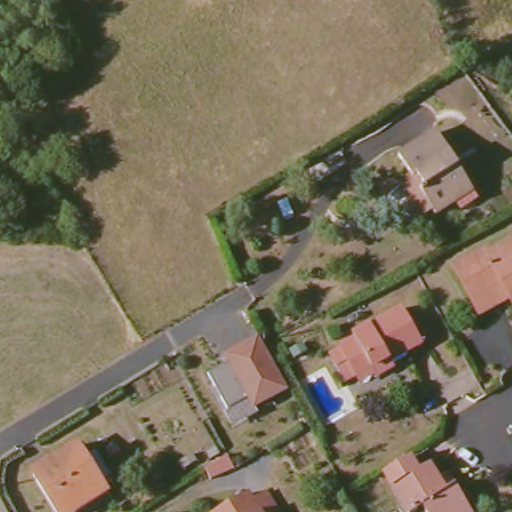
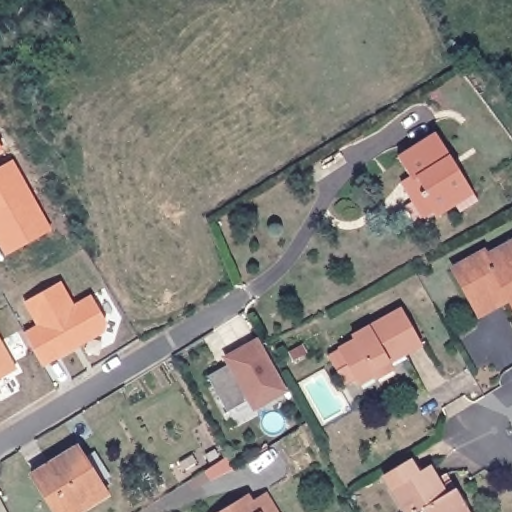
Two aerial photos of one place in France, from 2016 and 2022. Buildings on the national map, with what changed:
unchanged [(444,135),(476,189),(456,200),(461,210),(438,221),(425,197),(429,195),(422,182),(417,185),(402,158),(444,135)]
new [(0,155),(0,144),(5,152),(0,155)]
new [(52,231),(7,255),(0,241),(0,168),(13,161),(52,231)]
unchanged [(477,303),(458,269),(491,252),(494,256),(512,246),(512,285),(477,303)]
new [(40,327),(27,302),(62,283),(75,307),(94,297),(107,321),(104,333),(84,344),(78,342),(71,346),(73,350),(44,367),(26,335),(40,327)]
unchanged [(348,333),(350,337),(360,331),(358,328),(405,302),(427,340),(405,351),(391,360),(394,366),(373,377),(370,372),(360,377),(349,383),(327,345),(339,338),(348,333)]
unchanged [(207,372),(227,362),(222,353),(257,335),(287,387),(252,408),(246,398),(226,408),(207,372)]
new [(0,382),(0,339),(19,372),(0,382)]
unchanged [(67,512),(57,512),(34,476),(80,447),(105,488),(67,512)]
unchanged [(405,479),(421,470),(437,497),(446,492),(458,512),(415,512),(412,508),(410,512),(394,512),(375,478),(396,466),(405,479)]
unchanged [(271,512),(208,512),(237,495),(243,505),(260,494),(271,512)]

